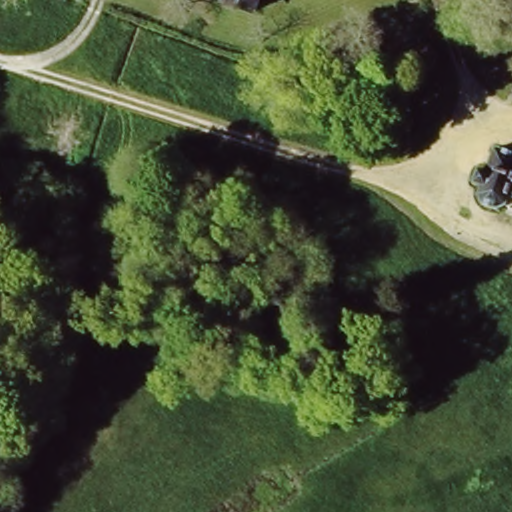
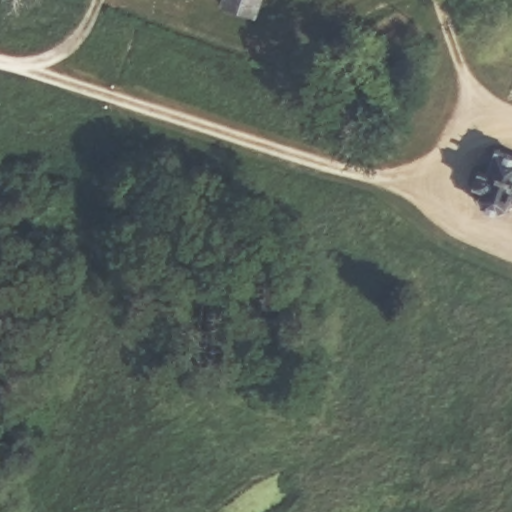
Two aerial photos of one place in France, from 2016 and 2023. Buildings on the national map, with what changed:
unchanged [(221,0),(264,0),(258,19),(219,6),(221,0)]
unchanged [(507,206),(502,221),(475,212),(480,198),(466,194),(475,166),(488,170),(495,150),(512,156),(512,207),(507,206)]

